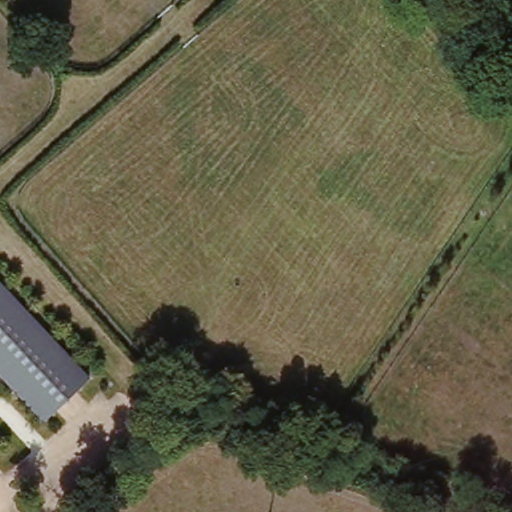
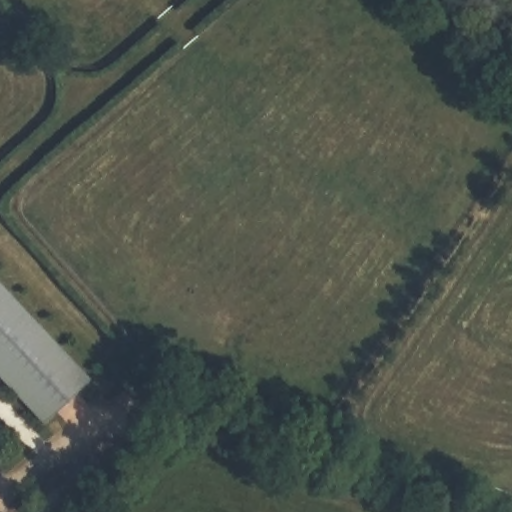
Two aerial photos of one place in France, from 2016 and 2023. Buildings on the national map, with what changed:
unchanged [(90,379),(42,423),(0,378),(0,283),(90,379)]

